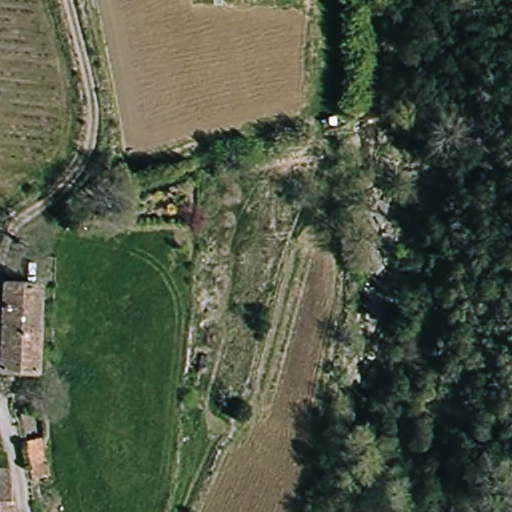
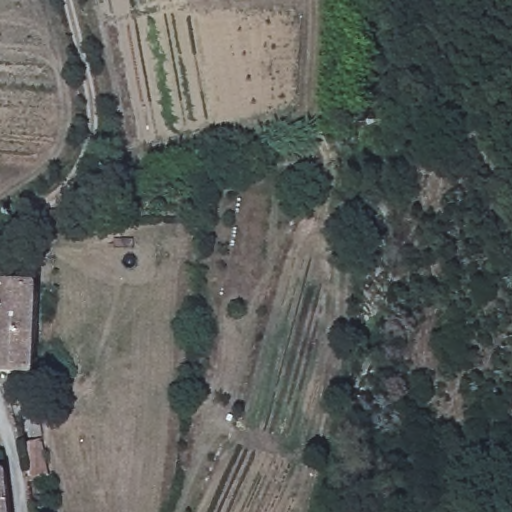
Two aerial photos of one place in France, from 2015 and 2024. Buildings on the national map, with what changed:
unchanged [(40,373),(9,373),(6,351),(0,351),(1,323),(5,317),(6,288),(43,289),(40,373)]
unchanged [(40,447),(47,487),(29,488),(23,449),(40,447)]
unchanged [(8,512),(0,512),(0,472),(3,473),(8,512)]

